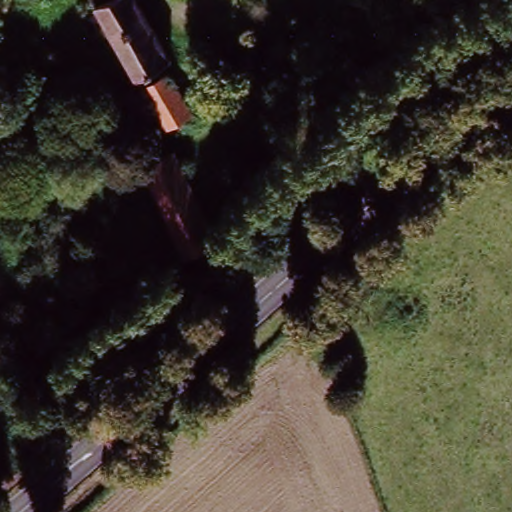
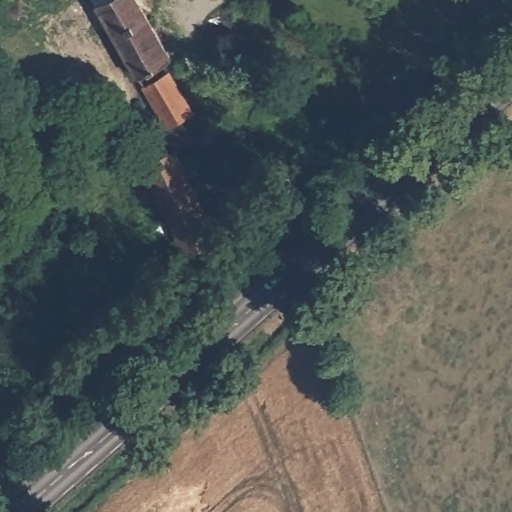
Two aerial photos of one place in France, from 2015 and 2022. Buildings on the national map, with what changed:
unchanged [(160,40),(170,61),(153,72),(160,83),(171,77),(188,113),(167,127),(160,114),(91,0),(135,0),(160,40)]
unchanged [(200,252),(169,159),(198,147),(200,147),(240,240),(200,252)]
unchanged [(200,252),(182,259),(147,168),(169,159),(200,252)]

